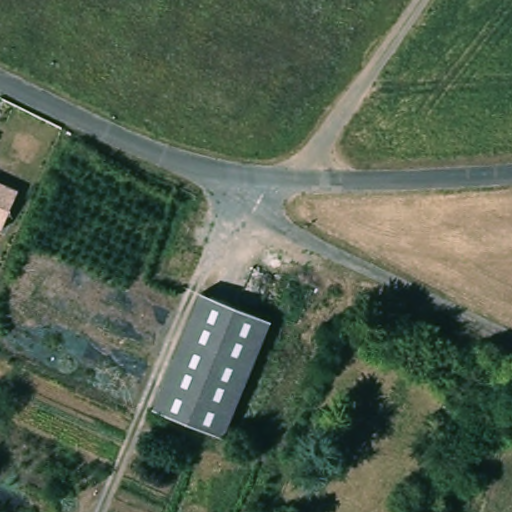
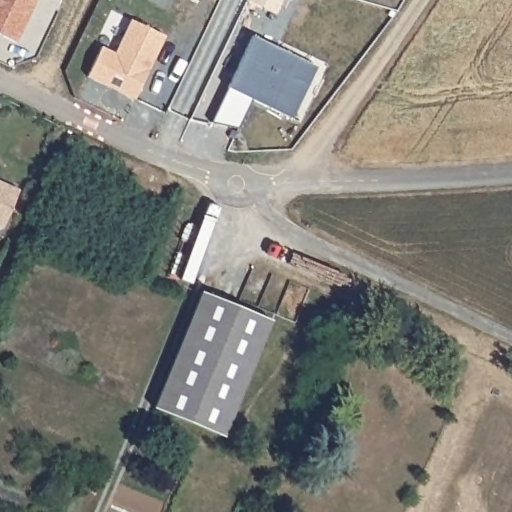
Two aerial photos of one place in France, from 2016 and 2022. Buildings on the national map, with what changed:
new [(14,45),(0,38),(0,0),(35,0),(14,45)]
new [(97,48),(113,56),(129,22),(163,38),(133,101),(84,78),(97,48)]
new [(251,44),(322,76),(297,127),(252,107),(237,132),(214,126),(251,44)]
unchanged [(2,227),(0,227),(0,182),(17,189),(2,227)]
unchanged [(272,321),(227,437),(157,410),(201,292),(272,321)]

